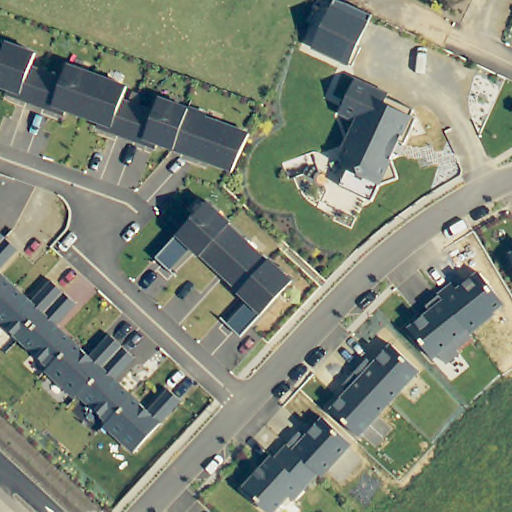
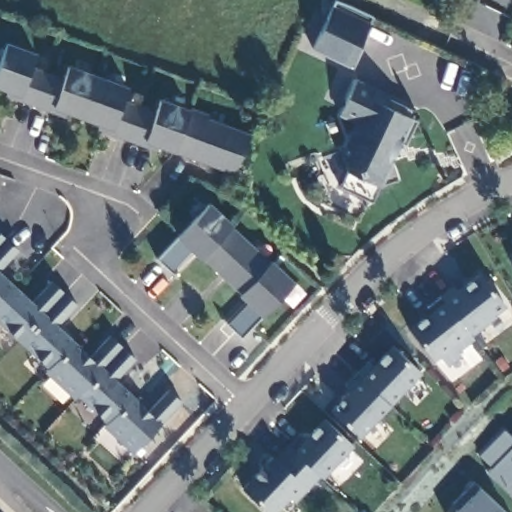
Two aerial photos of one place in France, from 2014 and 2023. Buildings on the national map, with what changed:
unchanged [(336,0),(337,0),(349,5),(373,16),(359,47),(362,49),(354,68),(313,49),(336,0)]
unchanged [(36,54),(31,68),(64,80),(69,66),(127,88),(123,101),(155,113),(160,99),(190,110),(190,109),(207,115),(206,119),(250,135),(234,171),(159,144),(157,149),(99,128),(100,123),(67,111),(65,115),(7,94),(9,89),(0,86),(0,61),(6,44),(36,54)]
unchanged [(342,155),(357,122),(340,114),(356,80),(390,95),(388,98),(415,111),(412,117),(417,120),(406,145),(396,140),(390,153),(395,155),(392,160),(399,179),(380,186),(372,202),(340,187),(347,171),(342,155)]
unchanged [(231,224),(230,226),(268,262),(270,260),(293,282),(241,338),(227,325),(249,302),(239,293),(241,292),(202,256),(200,257),(191,249),(170,271),(156,259),(209,203),(231,224)]
unchanged [(0,232),(6,238),(0,245),(0,232)]
unchanged [(0,270),(0,245),(6,238),(19,250),(0,270)]
unchanged [(511,256),(512,255),(512,258),(511,256)]
unchanged [(495,314),(497,316),(472,337),(473,339),(458,352),(461,355),(448,367),(440,357),(435,361),(409,328),(430,310),(427,307),(437,297),(436,296),(453,282),(458,289),(480,272),(506,305),(495,314)]
unchanged [(0,304),(0,273),(15,288),(0,304)]
unchanged [(0,321),(0,304),(15,288),(32,303),(52,281),(65,293),(21,340),(0,321)]
unchanged [(50,368),(21,340),(65,293),(77,304),(57,326),(74,342),(50,368)]
unchanged [(80,395),(76,398),(46,371),(50,368),(74,342),(90,358),(111,336),(124,347),(80,395)]
unchanged [(360,438),(330,410),(348,390),(343,385),(369,359),(373,363),(392,344),(421,372),(360,438)]
unchanged [(109,422),(80,395),(124,347),(136,359),(115,381),(132,396),(109,422)]
unchanged [(149,412),(170,390),(182,402),(135,453),(105,426),(109,422),(132,396),(149,412)]
unchanged [(289,447),(300,434),(306,439),(325,419),(352,444),(322,477),(319,475),(289,447)]
new [(485,471),(490,465),(479,455),(505,428),(512,434),(512,494),(485,471)]
unchanged [(319,475),(294,501),(290,497),(275,512),(269,512),(243,488),(272,456),(275,459),(288,446),(289,447),(319,475)]
new [(456,502),(475,481),(480,487),(506,512),(457,512),(461,507),(456,502)]

